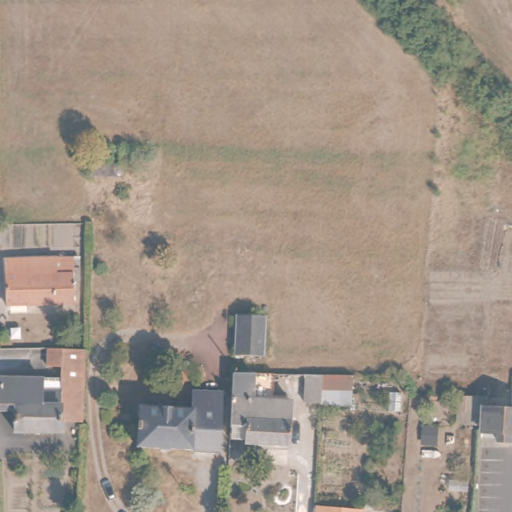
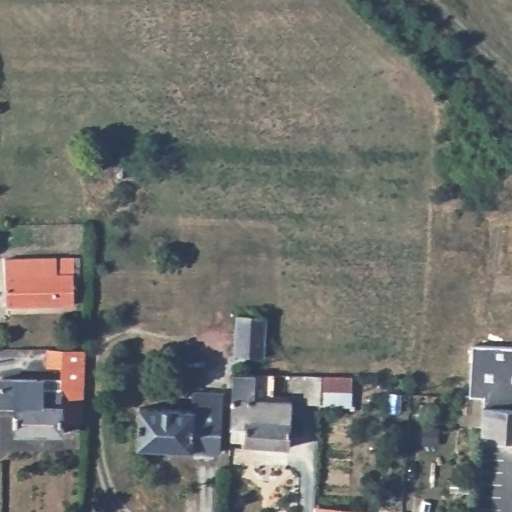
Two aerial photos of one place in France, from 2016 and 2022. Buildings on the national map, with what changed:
unchanged [(127,180),(92,180),(93,149),(127,150),(127,180)]
unchanged [(77,258),(79,306),(7,307),(6,260),(77,258)]
unchanged [(263,360),(236,358),(239,315),(265,317),(263,360)]
new [(512,346),(512,407),(487,405),(487,399),(468,398),(471,343),(512,346)]
unchanged [(47,425),(47,433),(2,435),(1,407),(0,407),(0,379),(42,378),(42,365),(29,366),(29,350),(75,348),(72,425),(47,425)]
unchanged [(232,427),(234,391),(234,376),(260,376),(258,391),(258,399),(295,400),(293,450),(252,451),(253,428),(232,427)]
unchanged [(310,397),(311,381),(327,381),(353,382),(353,399),(326,398),(325,410),(310,409),(310,397)]
unchanged [(192,391),(199,391),(221,392),(218,452),(195,450),(140,448),(142,405),(191,410),(192,391)]
unchanged [(461,398),(487,399),(487,405),(512,407),(512,435),(485,434),(485,429),(473,427),(460,425),(461,413),(461,398)]
unchanged [(365,512),(325,512),(325,509),(365,512)]

